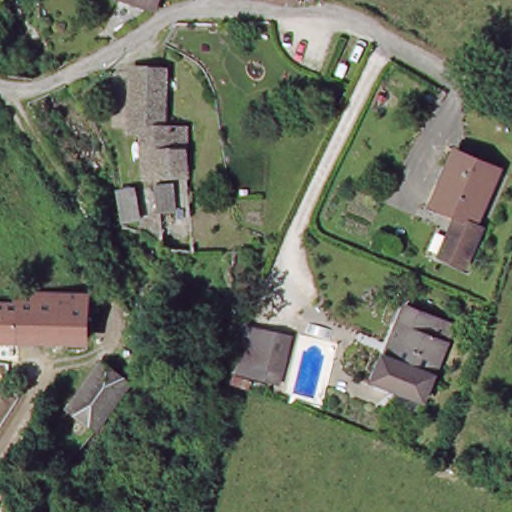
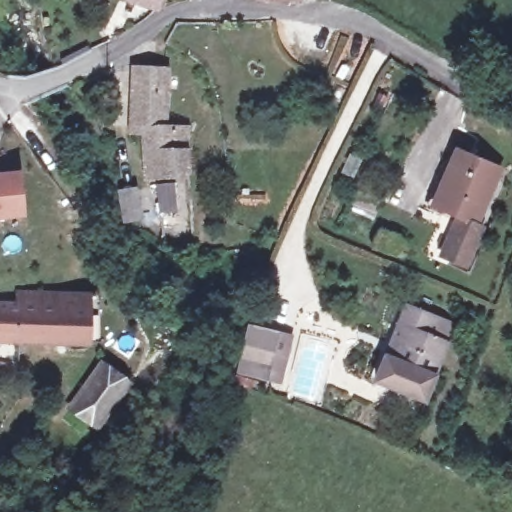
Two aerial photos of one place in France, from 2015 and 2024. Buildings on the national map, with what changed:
unchanged [(135,5),(136,3),(129,0),(159,0),(155,11),(135,5)]
unchanged [(315,3),(301,1),(300,3),(283,0),(315,0),(315,3)]
unchanged [(150,130),(137,129),(141,68),(170,68),(174,73),(172,112),(195,113),(192,182),(148,180),(150,130)]
unchanged [(478,229),(488,233),(475,273),(447,264),(460,227),(435,219),(447,184),(437,181),(448,149),(499,166),(478,229)]
new [(0,172),(20,170),(25,217),(0,219),(0,172)]
unchanged [(158,190),(175,190),(175,215),(158,215),(158,190)]
unchanged [(102,313),(85,313),(85,343),(62,340),(36,345),(2,345),(2,342),(0,342),(0,304),(20,304),(20,297),(42,297),(103,297),(102,313)]
unchanged [(452,319),(428,398),(376,383),(400,303),(452,319)]
unchanged [(271,324),(292,331),(278,378),(257,372),(271,324)]
unchanged [(103,365),(130,384),(98,429),(72,409),(103,365)]

